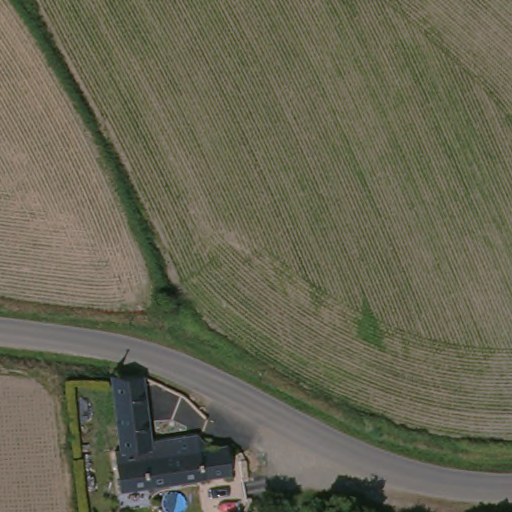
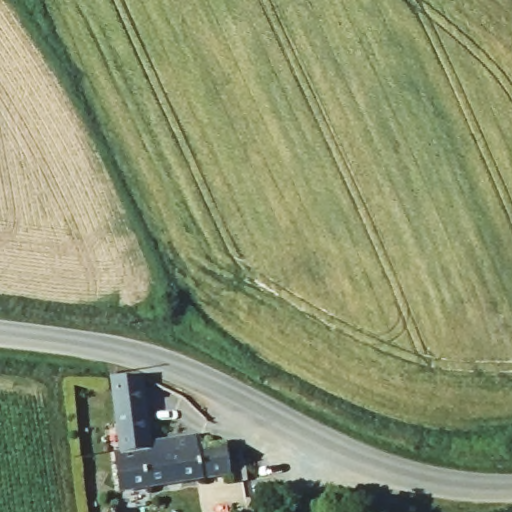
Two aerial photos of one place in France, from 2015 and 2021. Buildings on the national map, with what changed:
unchanged [(106,390),(133,383),(141,409),(143,412),(153,454),(124,460),(110,406),(106,390)]
unchanged [(119,470),(163,459),(160,444),(194,435),(198,449),(228,441),(234,467),(124,495),(119,470)]

